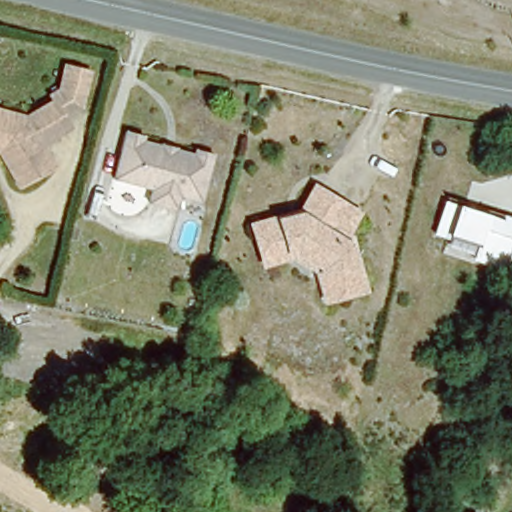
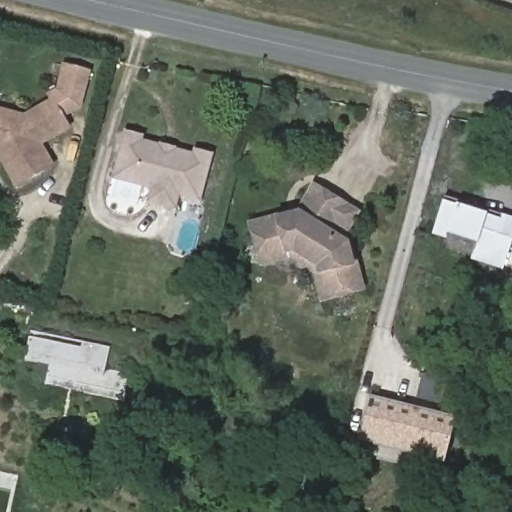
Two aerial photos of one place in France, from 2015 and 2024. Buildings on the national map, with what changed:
unchanged [(76,107),(61,114),(66,124),(39,137),(51,166),(15,182),(0,151),(0,100),(18,105),(40,96),(37,89),(56,81),(64,58),(89,65),(76,107)]
unchanged [(189,150),(190,145),(207,150),(193,196),(172,190),(168,203),(143,195),(146,183),(109,173),(122,126),(138,131),(136,135),(157,141),(156,144),(163,147),(165,141),(189,150)]
unchanged [(358,279),(318,289),(314,277),(318,276),(314,262),(289,247),(257,252),(250,215),(280,209),(288,213),(310,181),(341,200),(353,206),(339,229),(349,236),(358,279)]
unchanged [(505,269),(474,260),(479,243),(435,231),(443,203),(502,218),(504,214),(512,216),(512,245),(505,269)]
new [(46,385),(50,366),(25,361),(31,331),(109,347),(105,369),(131,375),(126,401),(46,385)]
new [(360,443),(371,396),(416,408),(423,375),(462,385),(456,418),(445,465),(360,443)]

